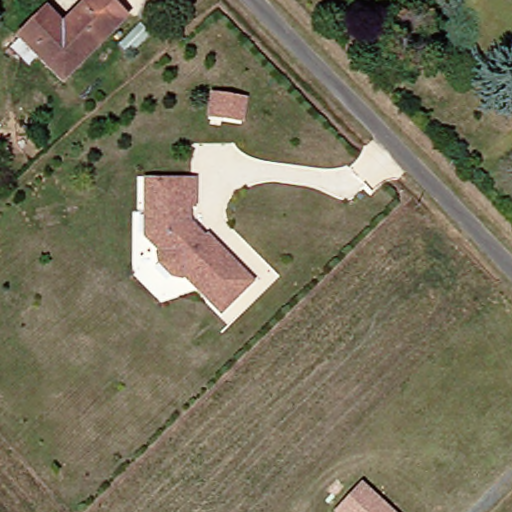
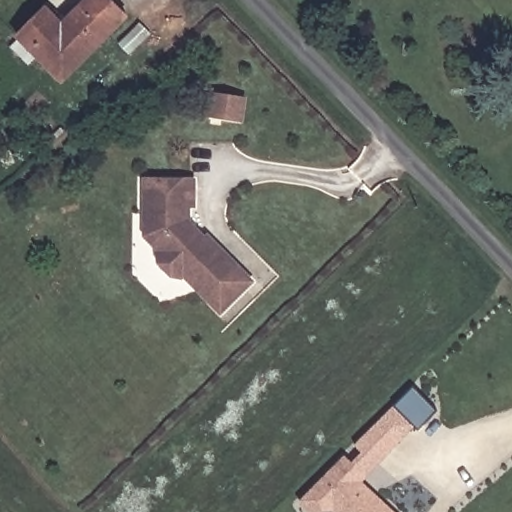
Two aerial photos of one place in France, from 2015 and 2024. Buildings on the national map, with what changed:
unchanged [(67,82),(22,37),(51,9),(67,24),(92,0),(115,0),(132,18),(67,82)]
unchanged [(213,116),(217,91),(218,84),(240,87),(238,94),(235,119),(213,116)]
unchanged [(199,176),(199,202),(194,202),(194,219),(210,236),(213,233),(224,245),(257,279),(225,310),(189,273),(186,275),(176,273),(164,260),(160,251),(164,247),(157,240),(150,232),(150,211),(150,176),(199,176)]
new [(413,386),(437,410),(419,428),(413,422),(397,439),(378,422),(413,386)]
new [(367,477),(360,481),(335,509),(323,512),(309,512),(298,502),(345,456),(367,477)]
unchanged [(337,512),(335,509),(360,481),(393,512),(337,512)]

